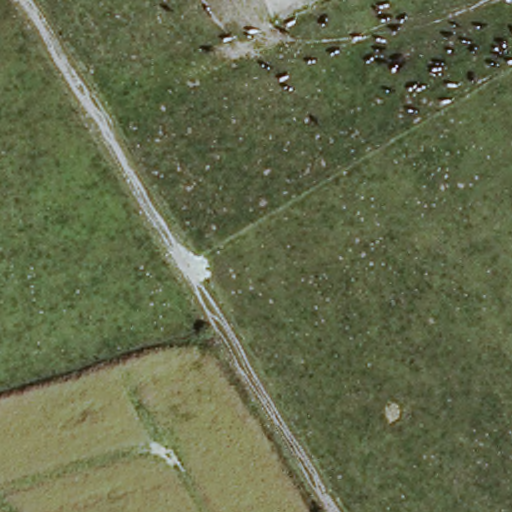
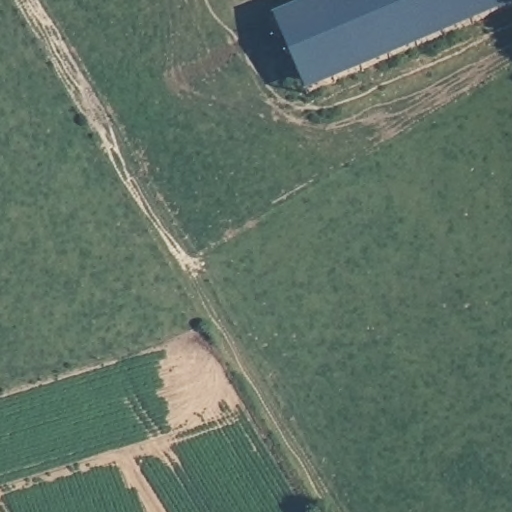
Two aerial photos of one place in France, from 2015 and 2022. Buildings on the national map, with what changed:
new [(512,11),(309,95),(275,18),(317,0),(512,0),(512,11)]

